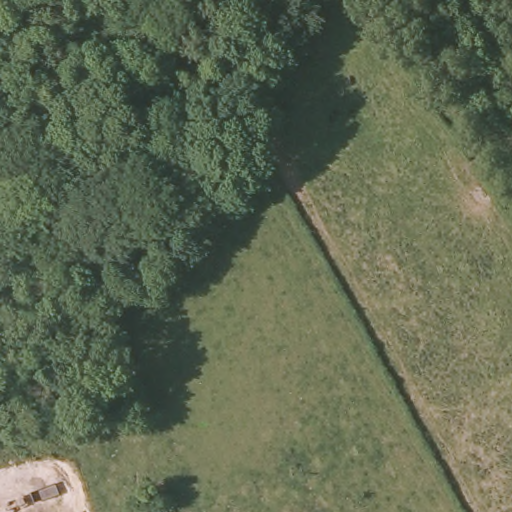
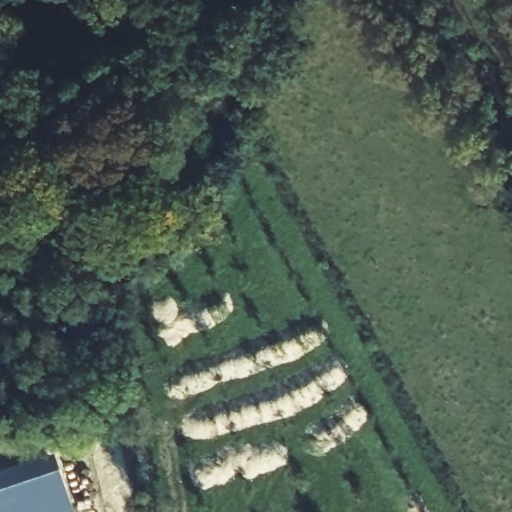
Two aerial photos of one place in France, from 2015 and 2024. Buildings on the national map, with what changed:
new [(55,454),(73,512),(0,512),(0,471),(55,454)]

